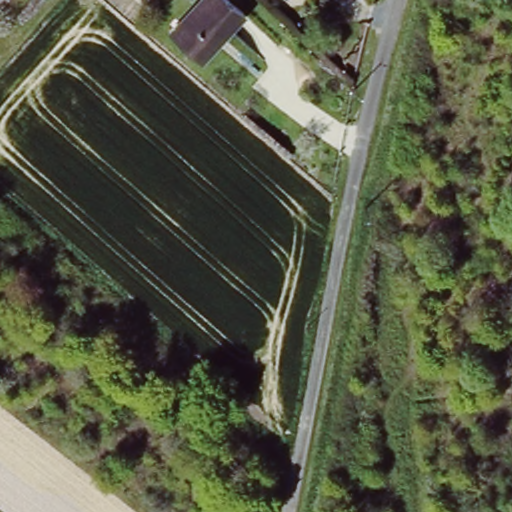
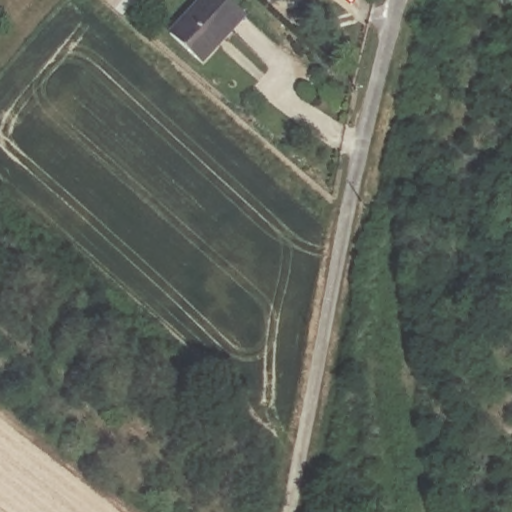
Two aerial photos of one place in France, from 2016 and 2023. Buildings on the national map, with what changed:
unchanged [(231,0),(245,13),(200,65),(166,35),(196,0),(231,0)]

